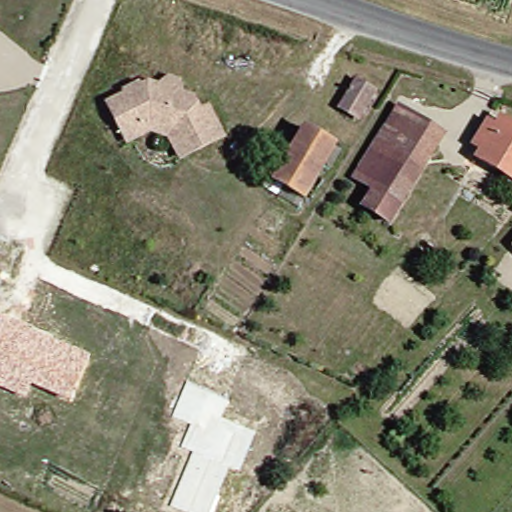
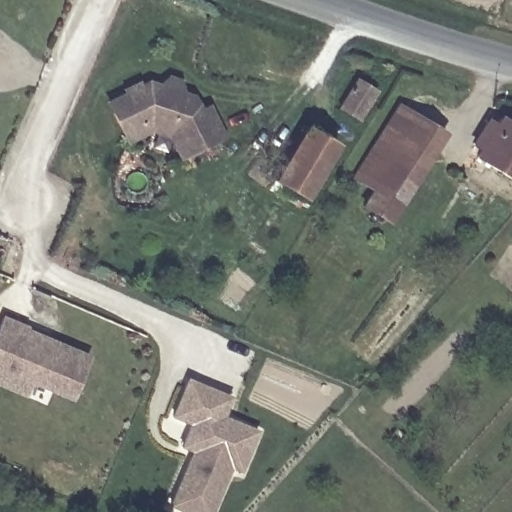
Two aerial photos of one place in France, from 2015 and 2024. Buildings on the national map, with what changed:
unchanged [(362,116),(343,105),(357,77),(377,87),(362,116)]
unchanged [(167,139),(147,132),(124,144),(121,137),(105,105),(124,96),(123,91),(135,87),(137,89),(145,85),(155,89),(161,87),(165,79),(179,83),(177,94),(181,99),(188,100),(195,115),(206,110),(219,140),(194,152),(176,159),(167,139)]
unchanged [(382,183),(365,174),(387,131),(376,124),(385,110),(395,116),(412,125),(382,183)]
unchanged [(503,121),(512,126),(512,179),(481,159),(503,121)]
unchanged [(443,140),(400,226),(368,210),(382,183),(412,125),(443,140)]
unchanged [(281,181),(288,166),(303,130),(336,146),(318,180),(310,197),(281,181)]
unchanged [(71,403),(31,388),(25,401),(0,389),(0,323),(2,317),(92,356),(71,403)]
new [(222,416),(257,430),(239,473),(229,470),(212,512),(177,512),(166,507),(189,452),(179,447),(188,425),(170,417),(186,377),(231,397),(222,416)]

